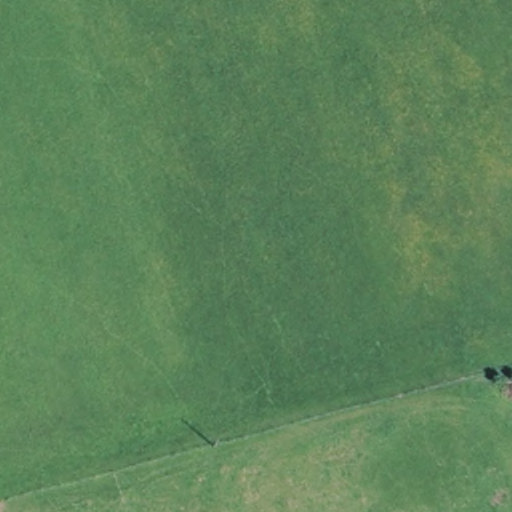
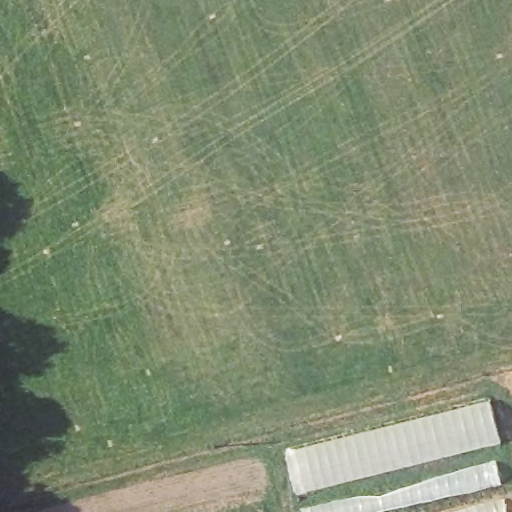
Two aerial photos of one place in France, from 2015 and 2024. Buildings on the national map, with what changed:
new [(490,398),(502,442),(369,474),(297,494),(285,451),(490,398)]
new [(381,494),(457,470),(496,460),(502,484),(384,510),(378,512),(301,512),(300,508),(344,499),(381,494)]
new [(450,512),(506,497),(509,512),(450,512)]

